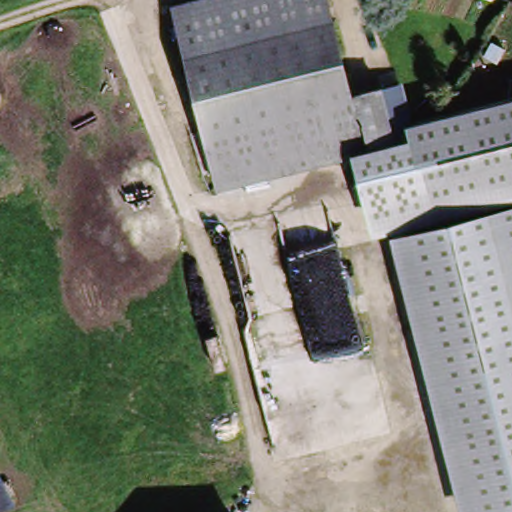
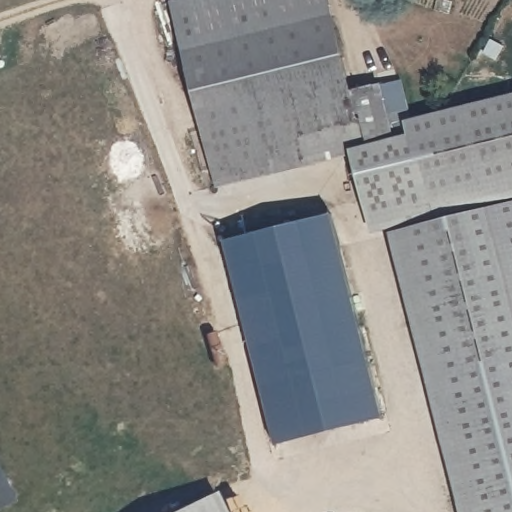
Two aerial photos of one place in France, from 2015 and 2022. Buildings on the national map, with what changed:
unchanged [(170,6),(196,0),(325,0),(347,96),(357,150),(359,161),(210,193),(170,6)]
unchanged [(398,88),(405,117),(385,121),(389,143),(357,150),(347,96),(379,91),(398,88)]
unchanged [(360,155),(410,144),(407,126),(512,100),(512,330),(482,212),(445,220),(385,233),(378,235),(360,155)]
unchanged [(482,212),(512,330),(512,512),(455,512),(385,233),(445,220),(482,212)]
new [(333,213),(384,417),(275,444),(225,241),(333,213)]

